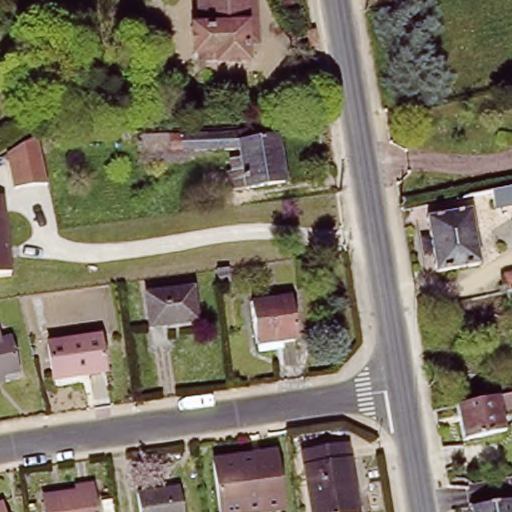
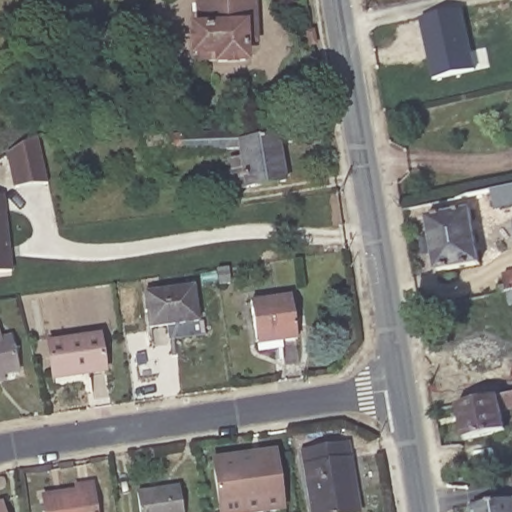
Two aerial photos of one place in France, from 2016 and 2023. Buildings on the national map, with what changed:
unchanged [(190,25),(200,22),(198,0),(252,0),(253,25),(241,26),(243,55),(216,57),(216,55),(198,56),(198,46),(191,47),(190,25)]
new [(462,9),(477,71),(432,81),(419,19),(462,9)]
unchanged [(184,129),(238,128),(240,137),(278,130),(286,174),(248,181),(241,144),(186,148),(184,129)]
unchanged [(37,137),(47,184),(13,188),(5,155),(37,137)]
unchanged [(492,189),(512,185),(512,201),(495,204),(492,189)]
unchanged [(3,192),(9,235),(0,237),(0,193),(3,192)]
unchanged [(439,271),(427,216),(470,207),(482,262),(439,271)]
unchanged [(9,235),(13,270),(0,272),(0,237),(9,235)]
unchanged [(507,268),(512,267),(512,292),(511,287),(507,268)]
unchanged [(230,285),(217,287),(215,274),(227,272),(230,285)]
unchanged [(201,285),(206,319),(160,326),(155,292),(201,285)]
unchanged [(296,330),(281,332),(283,342),(257,345),(250,294),(290,288),(296,330)]
unchanged [(0,379),(0,334),(8,332),(15,365),(3,368),(5,378),(0,379)]
unchanged [(104,333),(110,370),(57,378),(52,341),(104,333)]
unchanged [(453,404),(512,392),(512,407),(500,409),(505,430),(461,440),(453,404)]
unchanged [(353,447),(362,512),(315,512),(307,454),(353,447)]
unchanged [(274,452),(283,512),(221,512),(213,460),(274,452)]
unchanged [(96,483),(100,512),(51,512),(48,495),(80,490),(79,485),(96,483)]
unchanged [(182,512),(139,512),(135,490),(178,484),(182,512)]
unchanged [(510,500),(512,499),(512,512),(473,512),(472,507),(476,506),(510,500)]
unchanged [(5,512),(0,512),(0,501),(1,500),(5,512)]

